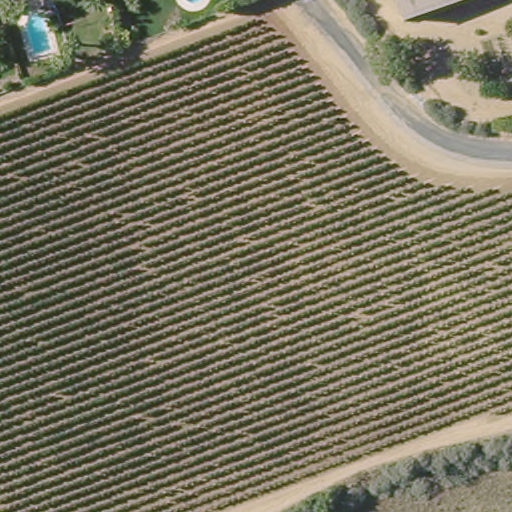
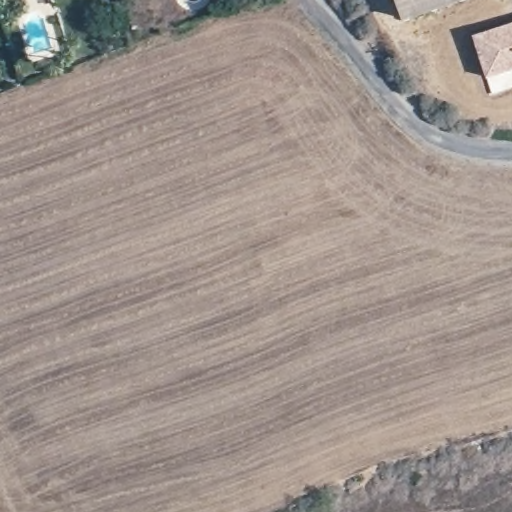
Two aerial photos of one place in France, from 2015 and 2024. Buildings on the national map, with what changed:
unchanged [(391,0),(470,0),(402,27),(391,0)]
new [(486,77),(471,34),(512,21),(512,71),(486,77)]

